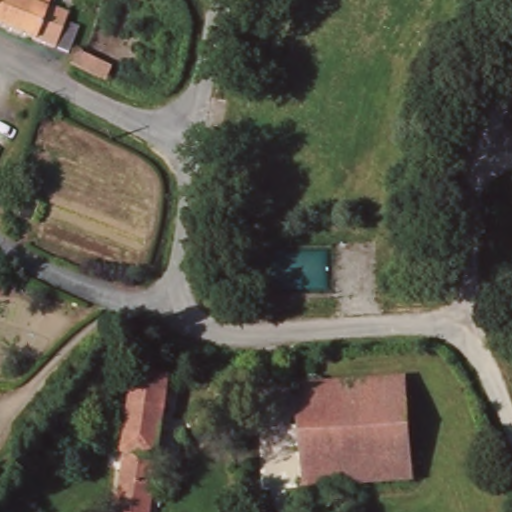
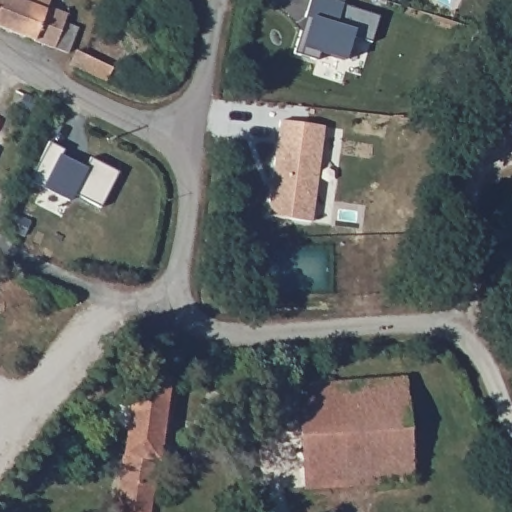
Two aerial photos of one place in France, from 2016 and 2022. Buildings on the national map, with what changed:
unchanged [(73,11),(70,22),(79,25),(68,54),(0,24),(0,0),(51,0),(73,11)]
new [(310,0),(344,0),(342,4),(379,15),(372,41),(350,36),(343,60),(319,52),(318,60),(294,52),(310,0)]
unchanged [(77,54),(112,70),(106,83),(71,66),(77,54)]
new [(279,120),(322,125),(310,221),(267,215),(279,120)]
new [(49,140),(65,148),(61,155),(80,164),(86,153),(114,167),(95,204),(68,190),(65,197),(30,179),(49,140)]
unchanged [(173,378),(170,392),(163,433),(149,512),(121,512),(114,511),(112,510),(134,385),(137,371),(173,378)]
unchanged [(304,509),(299,386),(402,379),(406,483),(393,483),(393,490),(394,503),(363,505),(304,509)]

